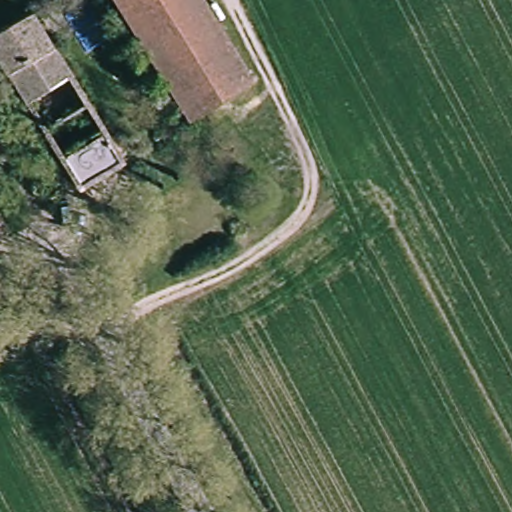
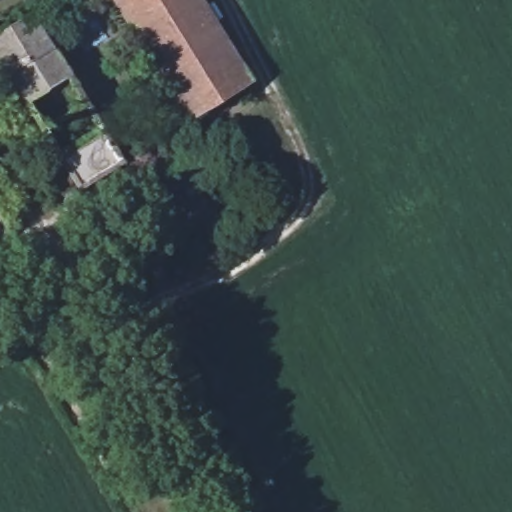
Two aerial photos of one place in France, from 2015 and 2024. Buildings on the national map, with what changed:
unchanged [(253,81),(185,122),(115,0),(204,0),(253,81)]
unchanged [(0,63),(0,29),(32,13),(70,72),(26,100),(0,63)]
unchanged [(122,163),(80,187),(58,155),(103,129),(122,163)]
unchanged [(11,242),(0,247),(0,223),(11,242)]

